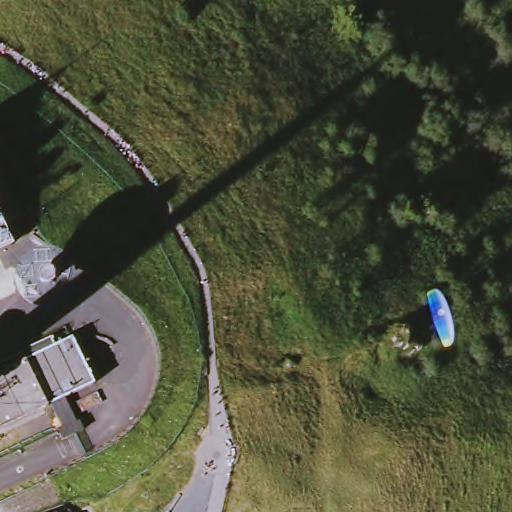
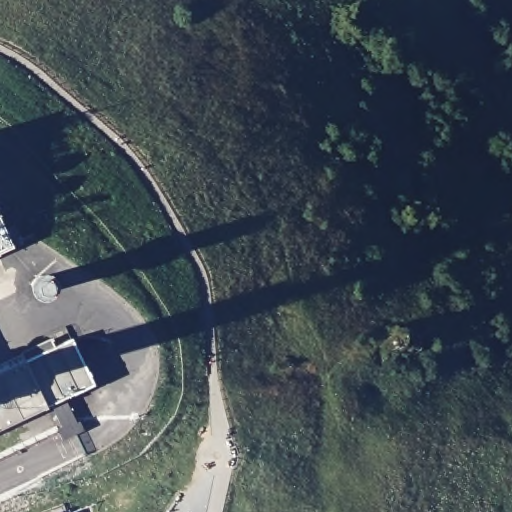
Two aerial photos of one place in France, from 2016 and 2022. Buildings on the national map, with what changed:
unchanged [(0,213),(4,221),(0,223),(0,213)]
unchanged [(5,224),(13,221),(17,231),(9,235),(12,240),(0,246),(0,223),(4,221),(5,224)]
unchanged [(69,339),(92,385),(46,407),(24,361),(69,339)]
unchanged [(46,407),(0,429),(0,373),(24,361),(46,407)]
unchanged [(62,512),(57,512),(61,510),(62,512)]

